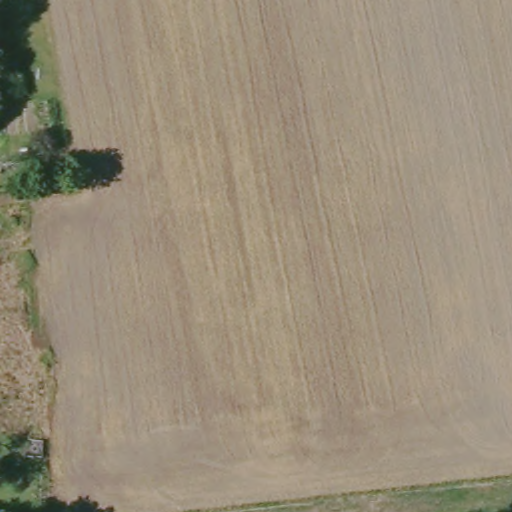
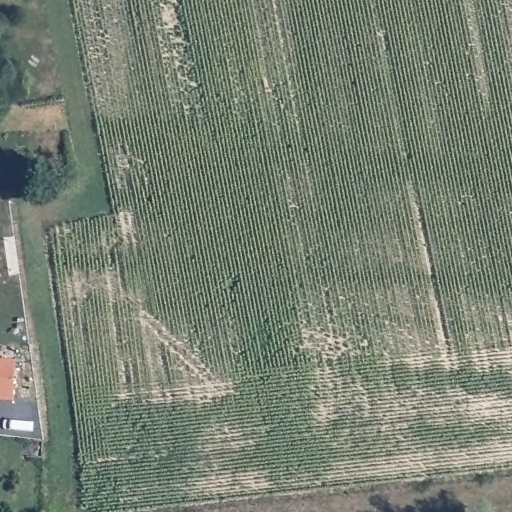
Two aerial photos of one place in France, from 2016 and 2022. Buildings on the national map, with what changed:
new [(15,394),(0,394),(0,358),(16,358),(15,394)]

